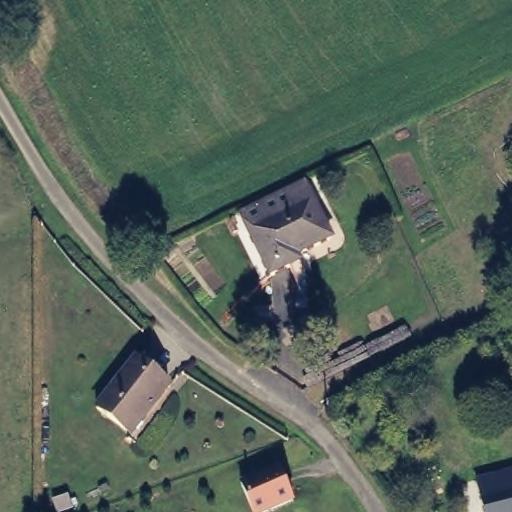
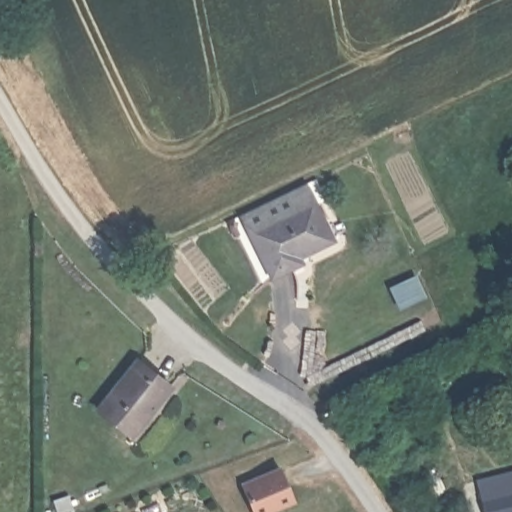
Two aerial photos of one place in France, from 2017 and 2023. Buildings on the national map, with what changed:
unchanged [(314,195),(334,241),(304,257),(306,267),(266,282),(242,229),(314,195)]
unchanged [(135,356),(168,382),(131,433),(96,407),(135,356)]
unchanged [(279,466),(295,503),(273,512),(251,512),(239,482),(279,466)]
unchanged [(512,469),(512,493),(493,498),(483,500),(477,477),(512,469)]
unchanged [(512,512),(486,512),(483,500),(512,493),(512,512)]

